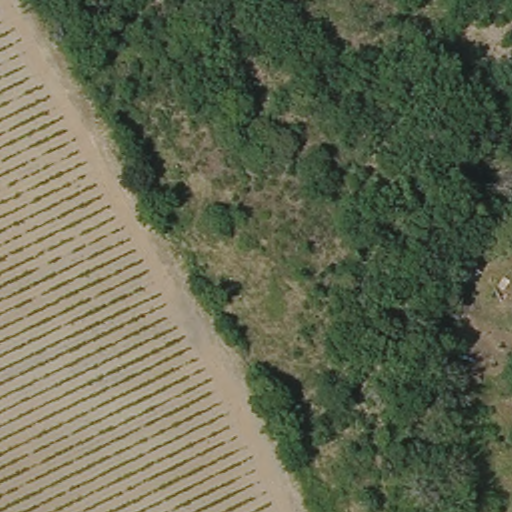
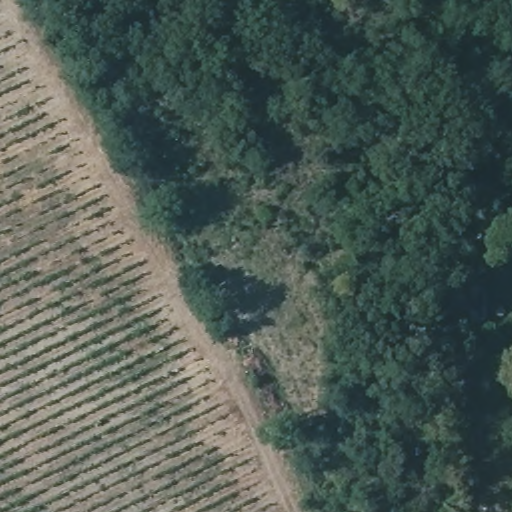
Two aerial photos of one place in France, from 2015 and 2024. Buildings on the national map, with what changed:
unchanged [(349,280),(352,265),(368,269),(367,284),(353,282),(349,280)]

